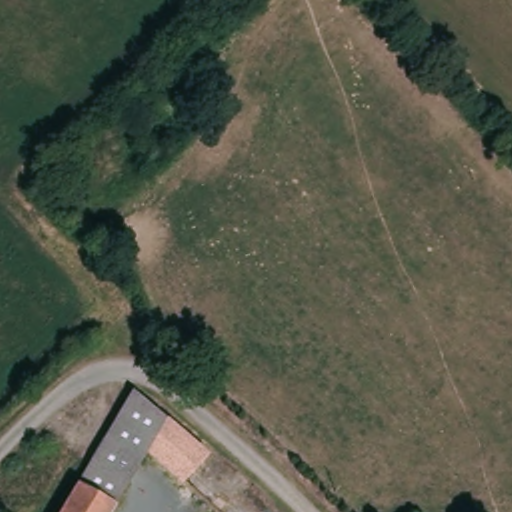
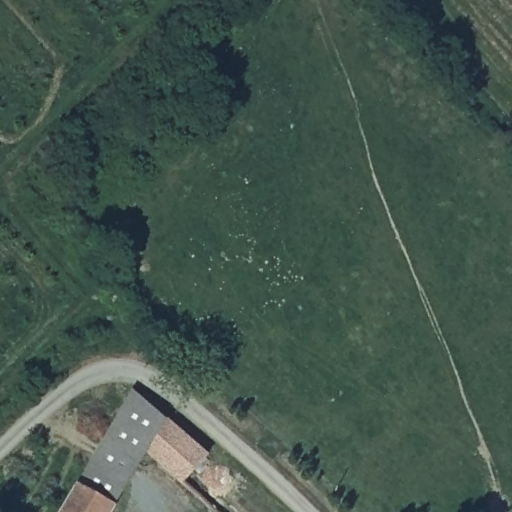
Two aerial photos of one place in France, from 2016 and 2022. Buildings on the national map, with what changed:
unchanged [(134,388),(208,457),(181,486),(147,454),(110,512),(59,512),(134,388)]

